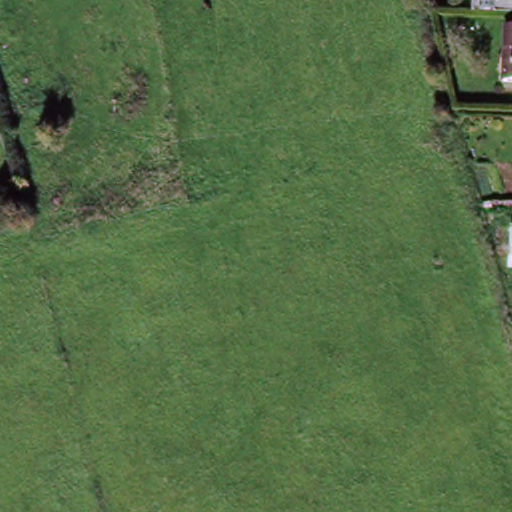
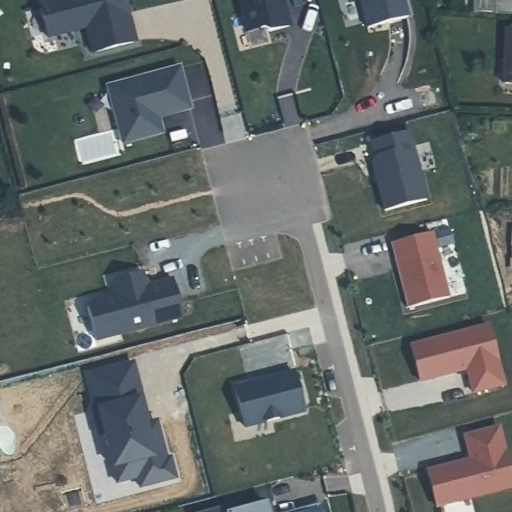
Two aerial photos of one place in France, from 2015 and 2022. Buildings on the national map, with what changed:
new [(170,31),(94,50),(87,25),(49,35),(40,2),(46,0),(161,0),(170,31)]
new [(289,26),(270,31),(261,26),(244,30),(236,0),(283,0),(289,26)]
new [(403,16),(364,28),(356,0),(399,0),(403,16)]
unchanged [(498,12),(499,0),(512,0),(512,13),(498,12)]
unchanged [(512,27),(512,77),(502,77),(505,27),(512,27)]
new [(109,91),(179,72),(188,107),(155,116),(161,138),(124,148),(109,91)]
new [(406,131),(423,199),(384,210),(371,160),(375,154),(371,140),(406,131)]
new [(432,231),(448,296),(407,307),(390,242),(432,231)]
new [(118,292),(114,278),(143,271),(146,285),(172,278),(182,317),(98,338),(88,300),(118,292)]
new [(488,325),(503,384),(473,392),(466,367),(420,380),(410,345),(488,325)]
new [(137,400),(145,425),(158,422),(168,460),(190,454),(195,473),(160,482),(158,472),(137,477),(125,430),(119,432),(112,406),(118,404),(110,370),(132,364),(141,399),(137,400)]
new [(292,376),(302,416),(250,429),(240,390),(292,376)]
new [(442,441),(497,427),(512,483),(512,485),(435,505),(426,471),(448,465),(442,441)]
new [(237,512),(208,512),(235,505),(237,512)]
new [(269,512),(245,512),(268,506),(269,512)]

